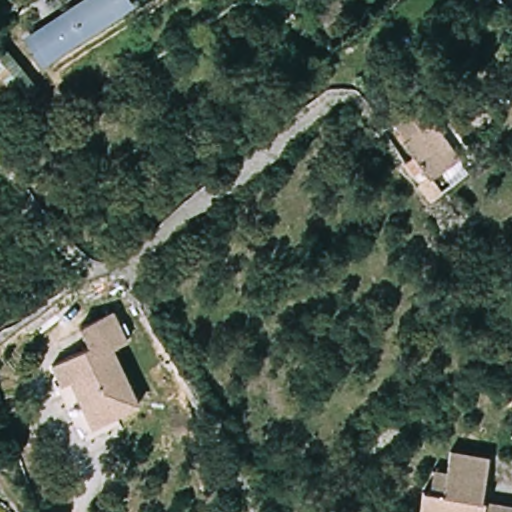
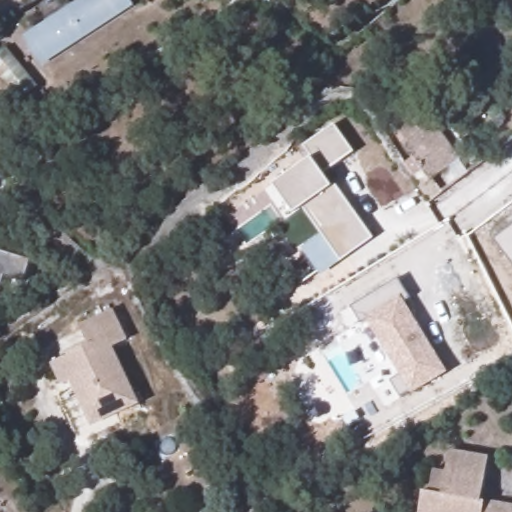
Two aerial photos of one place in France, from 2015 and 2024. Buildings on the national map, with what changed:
unchanged [(85,0),(132,0),(42,58),(29,36),(85,0)]
unchanged [(20,96),(0,73),(0,47),(5,43),(37,82),(20,96)]
unchanged [(430,177),(427,172),(419,160),(404,140),(406,139),(395,122),(425,100),(437,117),(434,119),(450,139),(458,151),(462,156),(430,177)]
new [(354,152),(325,177),(332,187),(335,184),(373,239),(341,262),(303,208),(294,214),(273,185),(310,156),(303,146),(334,125),(354,152)]
new [(512,224),(512,265),(493,240),(512,224)]
new [(30,260),(24,282),(4,277),(0,289),(0,251),(30,260)]
new [(409,298),(404,301),(446,370),(411,392),(410,391),(401,398),(390,381),(399,375),(366,320),(361,323),(350,307),(396,278),(409,298)]
unchanged [(117,344),(144,402),(94,425),(72,378),(63,382),(54,360),(93,342),(83,322),(118,306),(132,337),(117,344)]
unchanged [(425,485),(434,487),(437,466),(449,468),(453,447),(494,455),(487,496),(512,501),(512,512),(420,512),(425,485)]

